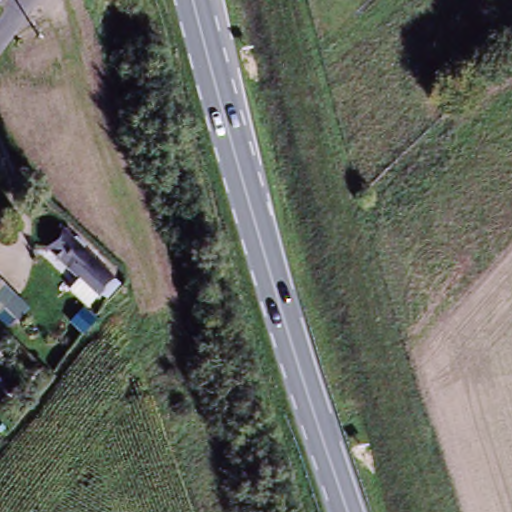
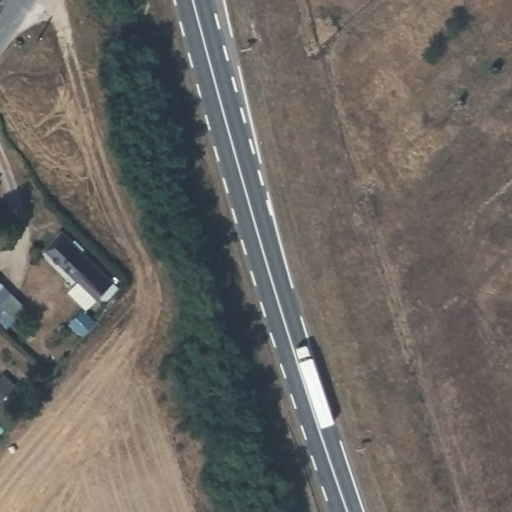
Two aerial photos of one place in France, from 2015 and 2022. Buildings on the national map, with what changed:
unchanged [(115,283),(89,309),(71,293),(81,283),(50,249),(66,233),(115,283)]
unchanged [(10,295),(0,304),(0,285),(10,295)]

